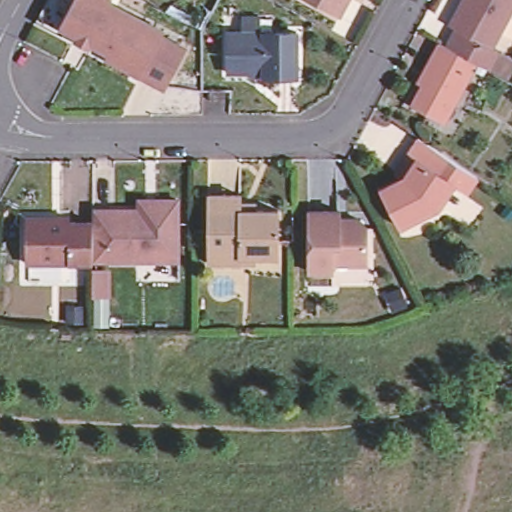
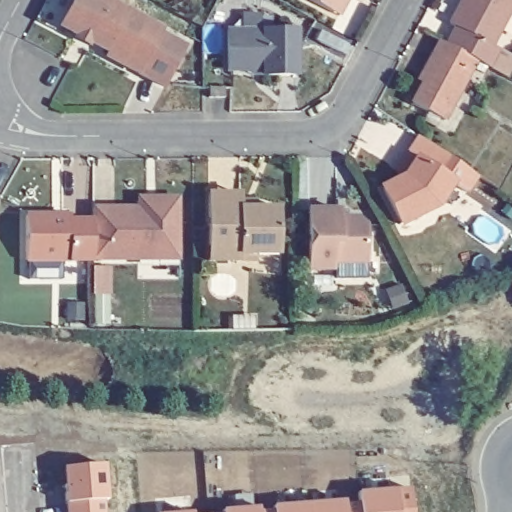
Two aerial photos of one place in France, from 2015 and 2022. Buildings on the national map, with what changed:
unchanged [(164,87),(105,56),(107,51),(91,43),(89,46),(74,38),(76,34),(60,26),(74,0),(110,0),(110,1),(162,29),(160,33),(181,45),(185,47),(177,63),(164,87)]
unchanged [(308,0),(347,0),(339,16),(333,13),(308,0)]
unchanged [(504,54),(494,73),(481,66),(452,50),(461,33),(455,29),(469,2),(470,0),(512,0),(512,23),(497,51),(504,54)]
unchanged [(252,71),(227,71),(227,31),(297,31),(297,76),(263,76),(252,76),(252,71)]
unchanged [(452,50),(481,66),(449,126),(417,109),(427,89),(423,86),(429,75),(445,46),(452,50)]
unchanged [(208,98),(208,88),(225,88),(225,98),(208,98)]
unchanged [(472,198),(457,188),(442,211),(405,230),(386,194),(404,185),(400,177),(414,157),(424,142),(441,154),(482,182),(472,198)]
unchanged [(208,261),(208,246),(208,194),(240,194),(240,202),(255,202),(255,209),(278,208),(278,255),(255,255),(255,261),(208,261)]
unchanged [(183,259),(98,259),(97,221),(97,208),(144,208),(144,198),(160,198),(182,198),(183,259)]
unchanged [(366,226),(367,262),(332,263),(332,270),(309,270),(309,210),(340,210),(340,217),(345,217),(358,217),(366,226)]
unchanged [(30,261),(30,216),(58,216),(74,216),(75,221),(97,221),(98,259),(98,261),(30,261)]
new [(111,497),(106,498),(107,512),(70,512),(67,465),(109,461),(111,497)]
new [(227,507),(264,506),(265,510),(278,509),(278,503),(349,499),(350,505),(365,504),(362,489),(414,486),(416,512),(227,512),(227,507)]
new [(197,510),(197,512),(169,512),(197,510)]

